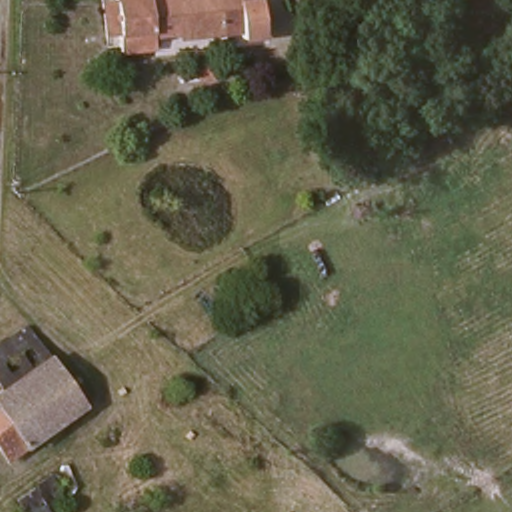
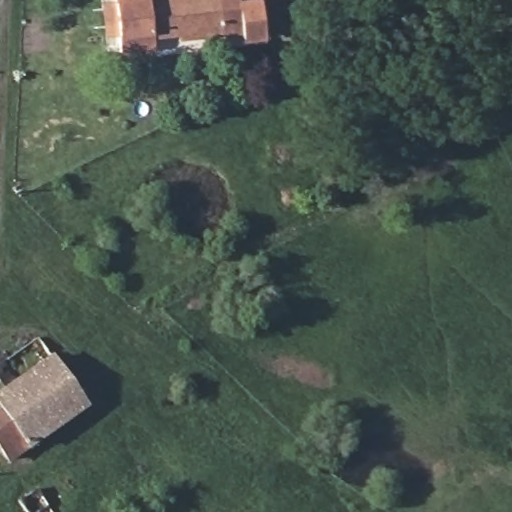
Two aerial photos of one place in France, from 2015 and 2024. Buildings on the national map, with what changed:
unchanged [(194,39),(192,31),(149,35),(151,50),(116,52),(113,28),(99,28),(97,0),(241,0),(244,33),(194,39)]
unchanged [(263,0),(270,39),(245,42),(244,33),(241,0),(263,0)]
unchanged [(6,452),(0,444),(0,401),(0,385),(50,350),(82,397),(6,452)]

